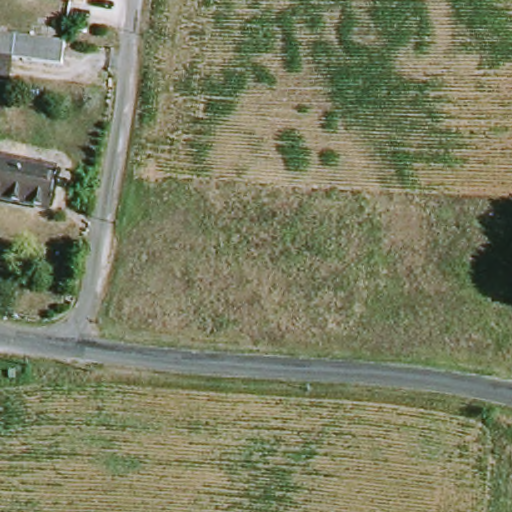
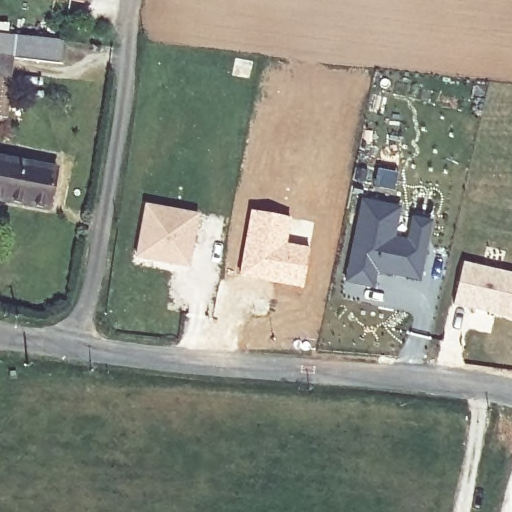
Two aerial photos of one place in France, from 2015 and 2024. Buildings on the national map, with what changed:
unchanged [(62,42),(60,64),(10,59),(8,79),(0,78),(0,36),(62,42)]
unchanged [(30,205),(0,200),(0,158),(58,168),(52,204),(51,210),(30,205)]
new [(360,197),(401,206),(395,235),(405,238),(411,214),(433,219),(420,280),(378,272),(375,288),(343,281),(360,197)]
new [(135,256),(145,205),(198,214),(188,265),(135,256)]
new [(250,209),(290,217),(286,241),(309,246),(302,287),(238,275),(250,209)]
new [(512,271),(512,319),(452,302),(463,260),(512,271)]

